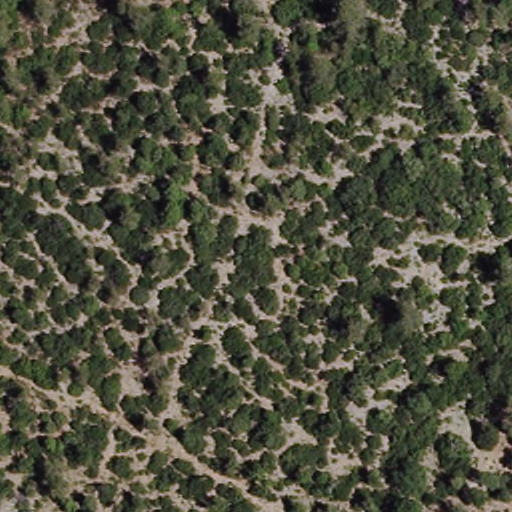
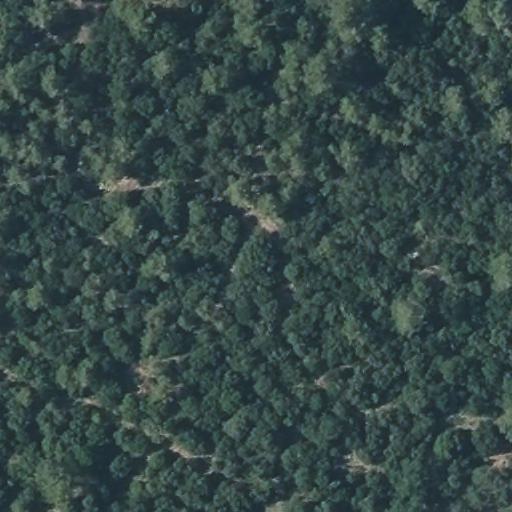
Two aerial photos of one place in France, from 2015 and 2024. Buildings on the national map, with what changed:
[]

